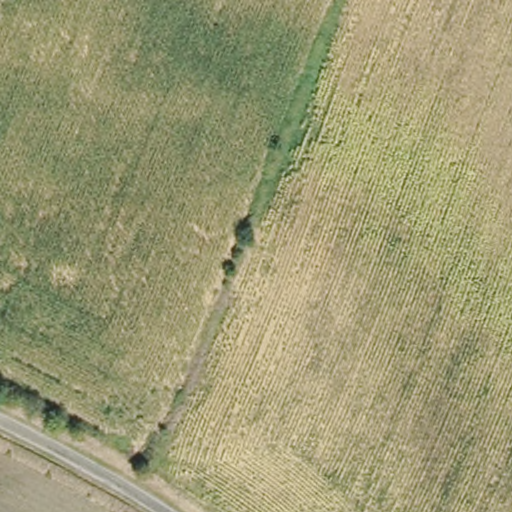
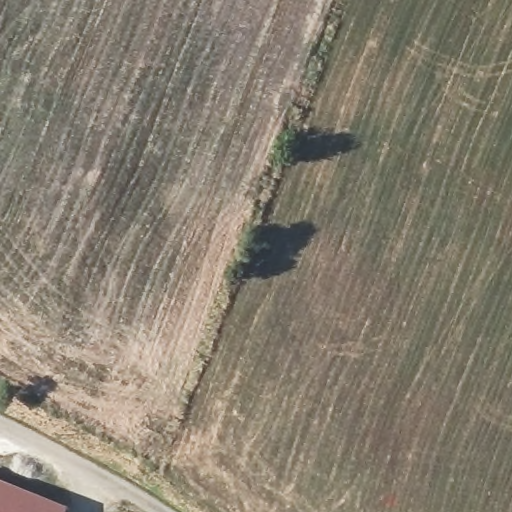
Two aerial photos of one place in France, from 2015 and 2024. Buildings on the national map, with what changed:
new [(65,510),(63,512),(0,512),(0,483),(65,510)]

